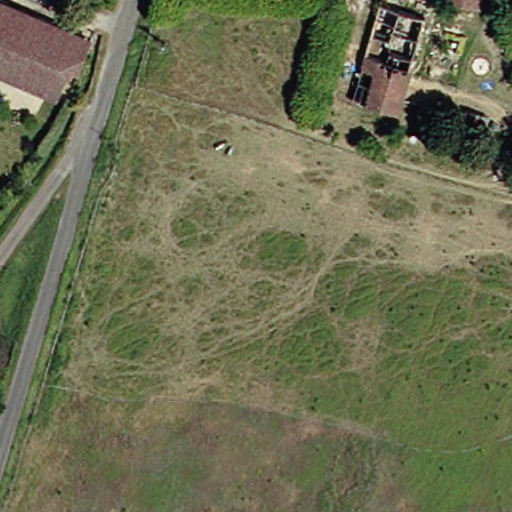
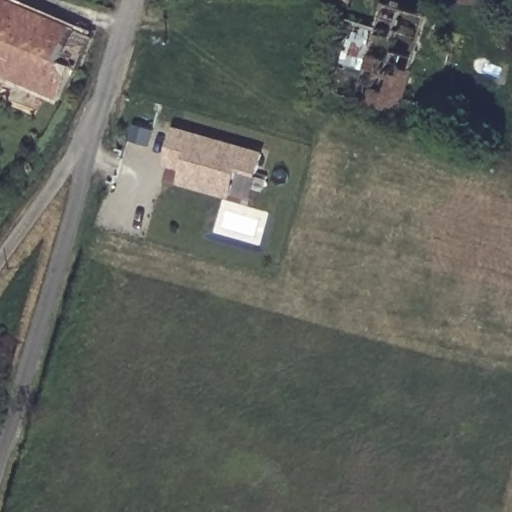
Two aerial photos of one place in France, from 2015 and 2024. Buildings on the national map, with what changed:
unchanged [(477,6),(452,0),(478,0),(477,6)]
unchanged [(0,76),(0,3),(71,34),(87,41),(73,72),(69,70),(55,100),(0,76)]
unchanged [(397,114),(365,102),(371,75),(355,71),(357,57),(407,69),(397,114)]
new [(173,132),(260,157),(254,176),(235,171),(226,199),(177,184),(181,171),(164,166),(173,132)]

